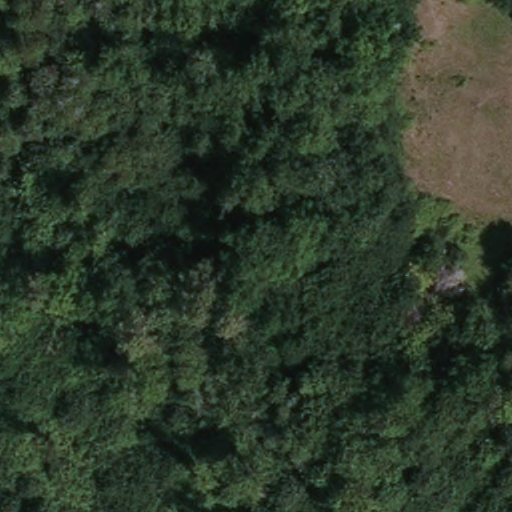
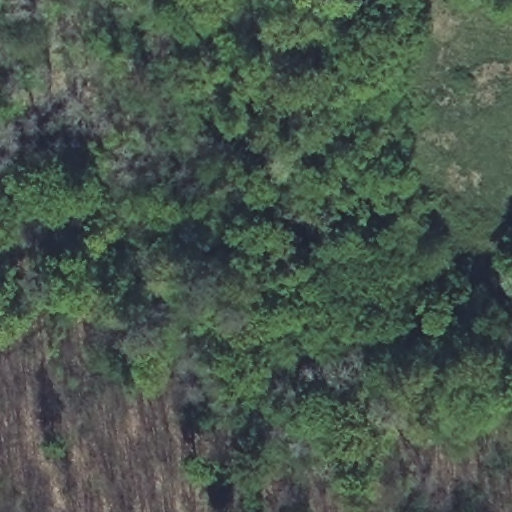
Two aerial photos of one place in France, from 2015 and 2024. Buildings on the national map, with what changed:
[]

